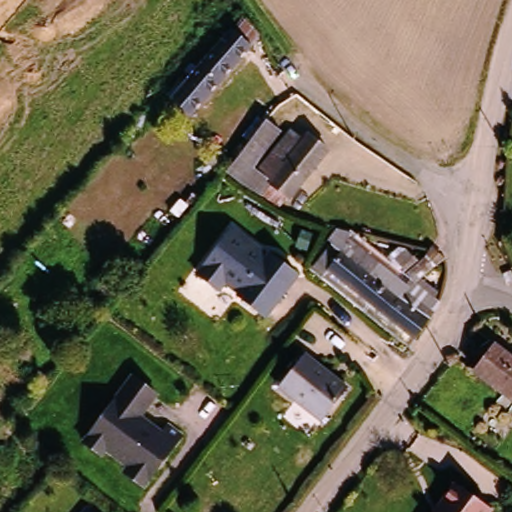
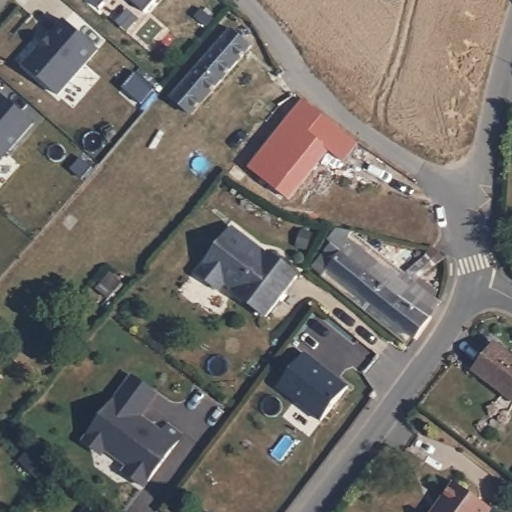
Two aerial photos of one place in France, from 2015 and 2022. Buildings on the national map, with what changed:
new [(100,6),(94,0),(106,0),(100,6)]
new [(144,10),(133,0),(153,0),(144,10)]
new [(67,19),(100,48),(59,94),(27,65),(67,19)]
unchanged [(258,44),(197,113),(177,96),(238,28),(258,44)]
new [(35,121),(0,160),(0,92),(35,121)]
unchanged [(284,117),(252,161),(248,158),(241,168),(230,161),(269,107),(284,117)]
unchanged [(315,154),(320,148),(340,163),(300,212),(280,196),(271,207),(252,196),(239,186),(279,134),(292,144),(264,181),(270,186),(302,143),(315,154)]
unchanged [(328,271),(330,269),(320,261),(340,236),(335,233),(344,222),(357,227),(358,225),(420,274),(419,276),(420,278),(426,271),(445,285),(441,294),(445,297),(435,309),(437,310),(422,333),(415,340),(370,304),(328,271)]
unchanged [(235,231),(260,250),(260,254),(269,261),(272,257),(300,278),(267,320),(240,298),(241,296),(227,286),(221,293),(200,277),(235,231)]
unchanged [(422,255),(412,264),(398,248),(405,241),(413,243),(422,255)]
unchanged [(122,281),(109,296),(97,286),(110,271),(122,281)]
unchanged [(512,353),(512,396),(476,370),(497,342),(512,353)]
unchanged [(307,358),(351,391),(325,425),(281,392),(307,358)]
unchanged [(123,383),(147,402),(130,424),(152,441),(159,433),(172,443),(134,494),(117,483),(117,476),(118,474),(95,457),(94,459),(87,459),(73,449),(123,383)]
unchanged [(439,512),(457,486),(494,512),(439,512)]

